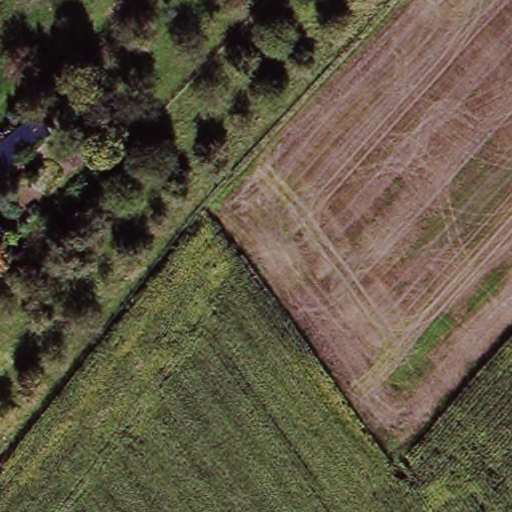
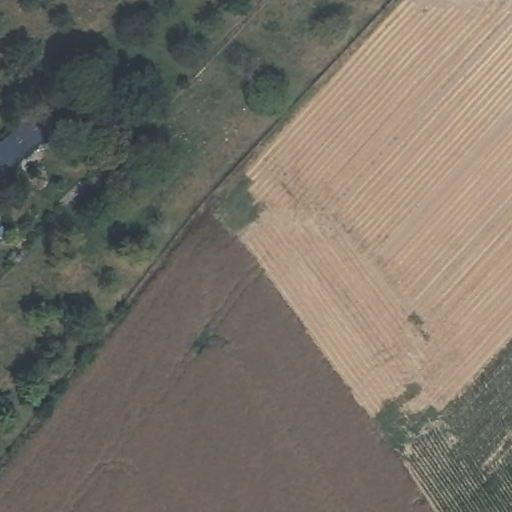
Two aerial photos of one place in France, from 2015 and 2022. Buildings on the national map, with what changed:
unchanged [(0,173),(0,143),(32,114),(46,131),(0,173)]

